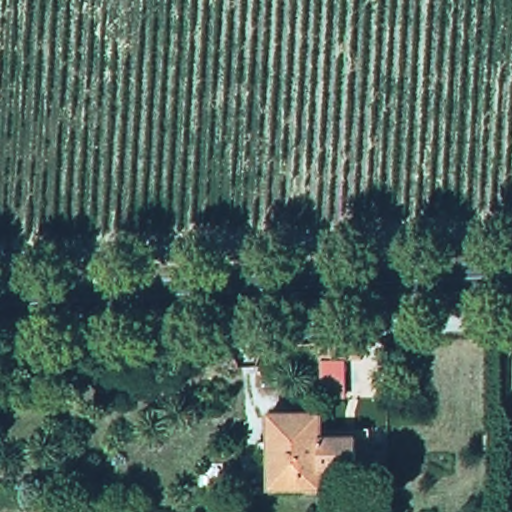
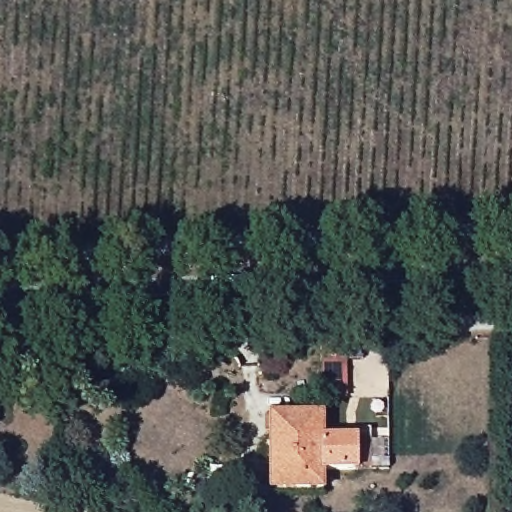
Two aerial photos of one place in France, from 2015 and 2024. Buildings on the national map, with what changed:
unchanged [(367,341),(368,358),(325,360),(325,344),(367,341)]
unchanged [(357,436),(357,472),(325,472),(325,491),(268,491),(268,412),(325,412),(325,437),(357,436)]

